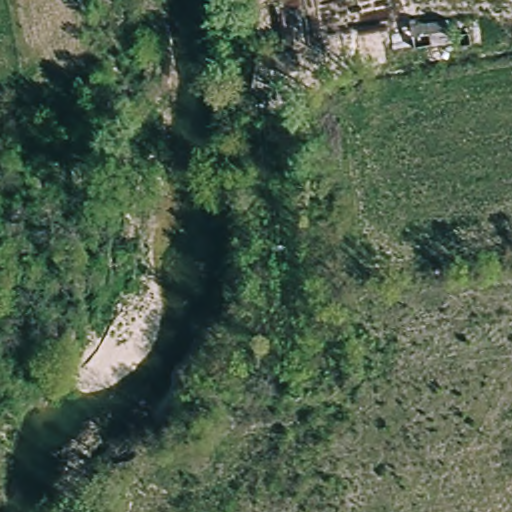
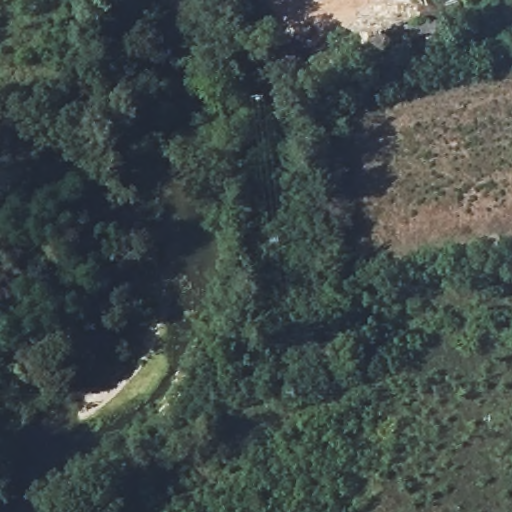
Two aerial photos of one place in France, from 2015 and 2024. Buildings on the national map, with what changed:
unchanged [(450,21),(453,45),(415,49),(413,26),(450,21)]
unchanged [(278,63),(299,58),(304,82),(282,85),(278,63)]

